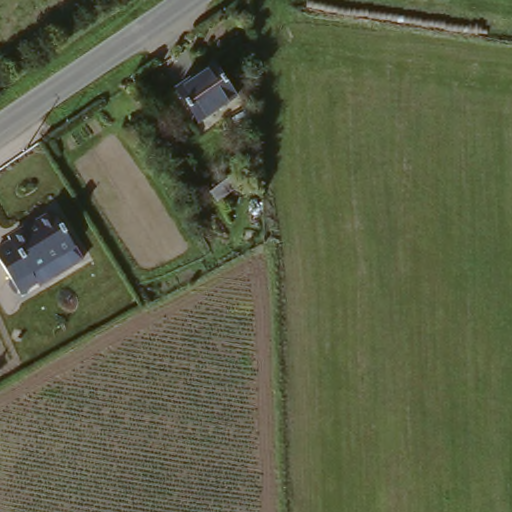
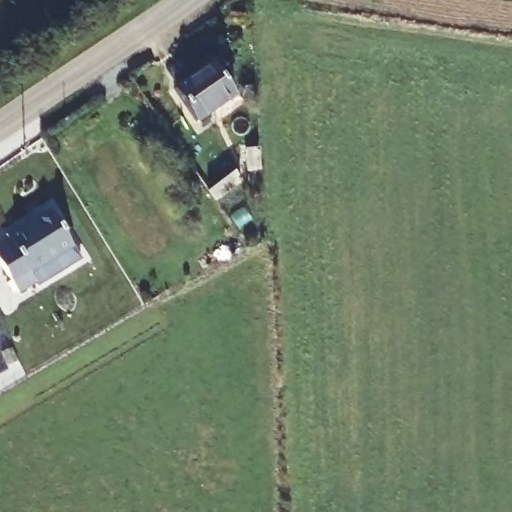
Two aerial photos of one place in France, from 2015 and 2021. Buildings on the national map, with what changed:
unchanged [(196,134),(170,98),(205,72),(230,109),(196,134)]
unchanged [(244,158),(243,136),(258,136),(259,158),(244,158)]
unchanged [(219,185),(209,170),(230,156),(239,171),(219,185)]
unchanged [(39,279),(22,288),(0,250),(0,249),(16,240),(14,236),(57,211),(77,244),(35,269),(39,279)]

